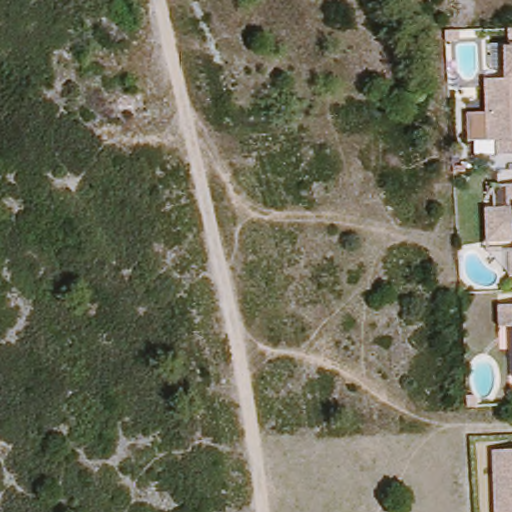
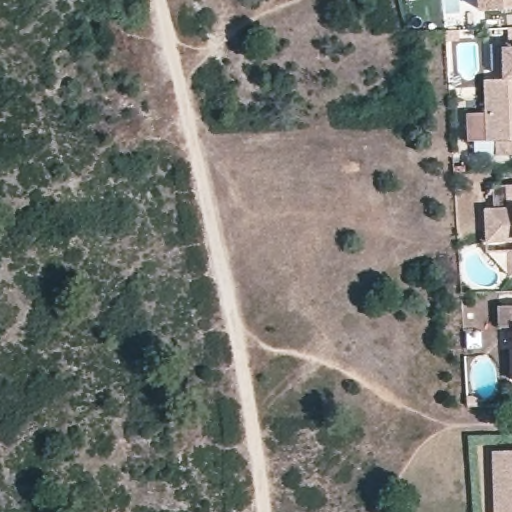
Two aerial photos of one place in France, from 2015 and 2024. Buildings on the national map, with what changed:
new [(479,12),(477,0),(512,0),(512,10),(479,12)]
unchanged [(455,33),(455,42),(442,44),(441,34),(455,33)]
unchanged [(495,140),(461,141),(461,113),(481,112),(480,79),(495,79),(495,46),(512,45),(512,157),(497,157),(495,140)]
new [(454,175),(454,169),(465,169),(465,174),(454,175)]
unchanged [(487,241),(487,205),(500,204),(499,180),(512,179),(512,244),(487,241)]
unchanged [(504,335),(503,315),(512,314),(512,335),(504,335)]
unchanged [(477,400),(478,408),(467,408),(467,398),(473,397),(477,400)]
unchanged [(496,448),(512,448),(512,512),(499,512),(496,448)]

